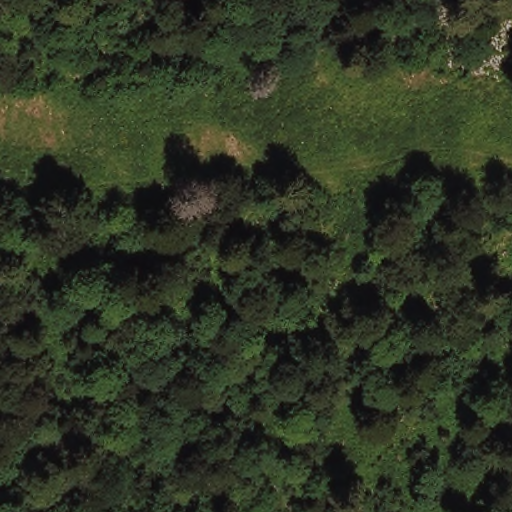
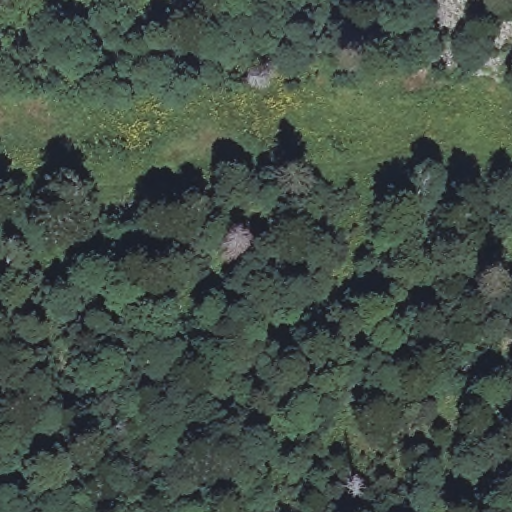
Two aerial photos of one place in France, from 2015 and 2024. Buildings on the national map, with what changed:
[]

